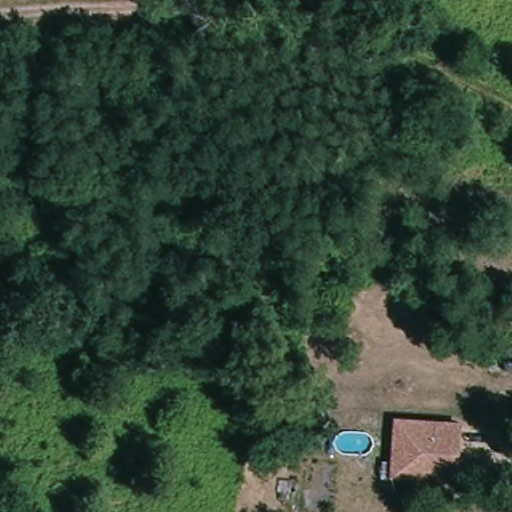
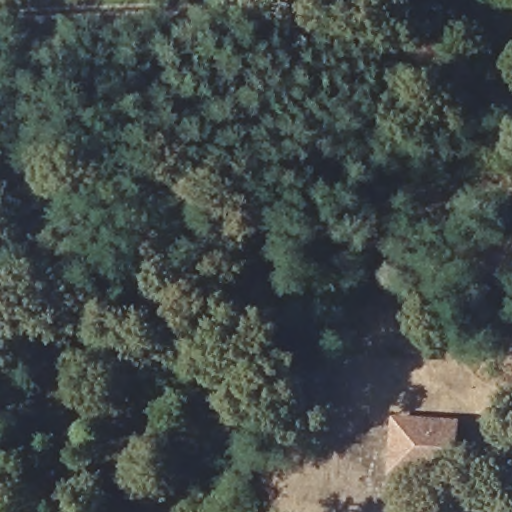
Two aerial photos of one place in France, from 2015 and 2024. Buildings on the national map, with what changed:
unchanged [(109,65),(110,87),(98,87),(86,86),(85,81),(64,82),(63,66),(109,65)]
unchanged [(393,420),(456,421),(455,441),(455,457),(454,476),(433,475),(391,474),(391,460),(393,420)]

